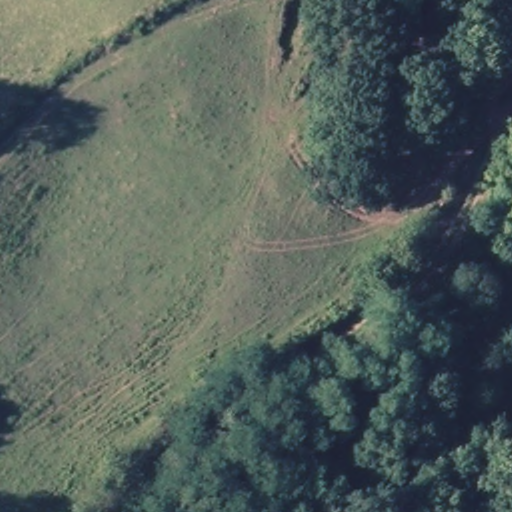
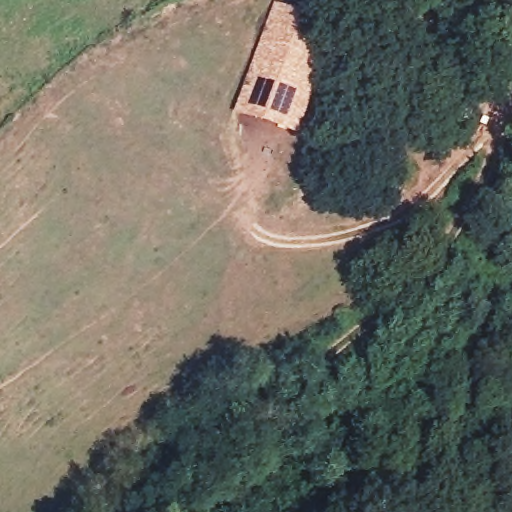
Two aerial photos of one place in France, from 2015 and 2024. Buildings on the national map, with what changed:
unchanged [(404,43),(399,1),(409,0),(424,0),(427,37),(404,43)]
new [(338,23),(300,138),(233,115),(275,3),(338,23)]

